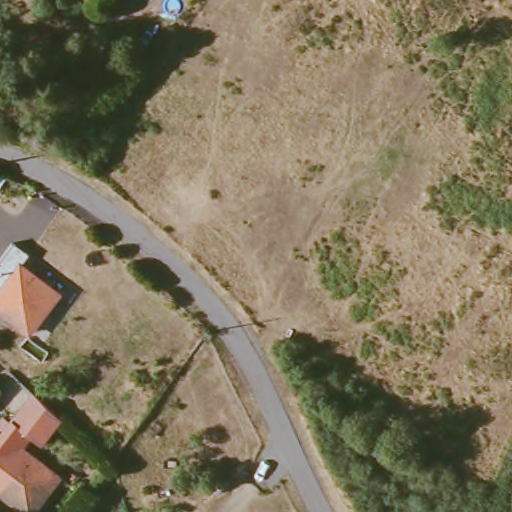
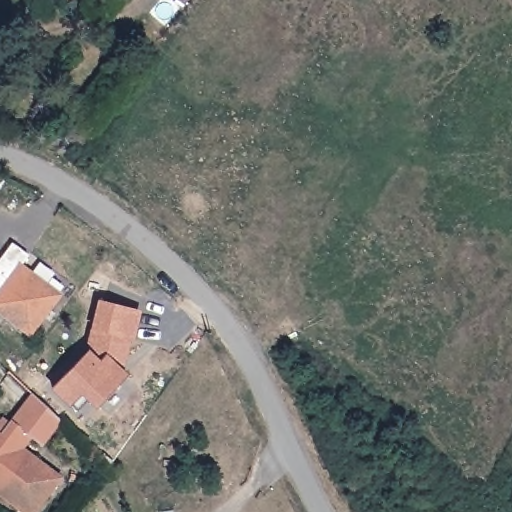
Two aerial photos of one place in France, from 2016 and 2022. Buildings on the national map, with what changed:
unchanged [(15,264),(53,292),(31,324),(0,304),(0,252),(9,240),(25,250),(15,264)]
new [(87,352),(103,302),(141,313),(132,342),(129,341),(123,360),(120,359),(112,366),(125,378),(110,393),(106,390),(91,404),(87,400),(76,411),(52,387),(87,352)]
unchanged [(45,410),(55,419),(55,420),(37,444),(27,436),(26,436),(17,448),(55,476),(29,512),(24,512),(0,495),(0,430),(27,393),(45,410)]

